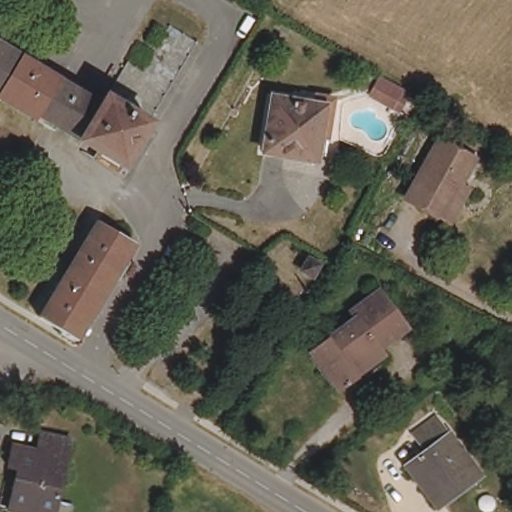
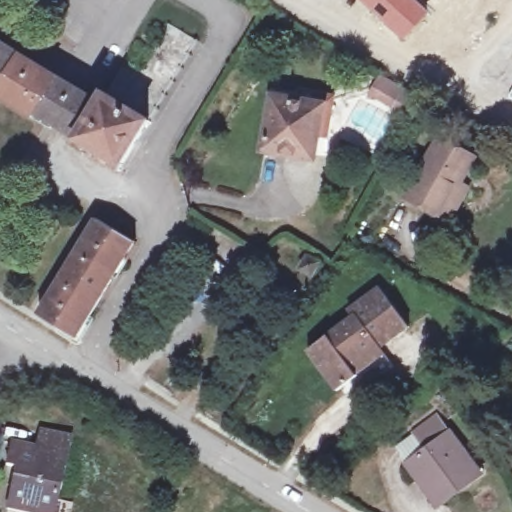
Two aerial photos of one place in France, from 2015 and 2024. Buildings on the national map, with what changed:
new [(430,11),(404,40),(361,0),(418,0),(430,11)]
unchanged [(127,71),(140,77),(170,32),(199,49),(127,174),(37,122),(35,125),(0,105),(0,47),(105,108),(127,71)]
unchanged [(368,96),(377,75),(409,93),(398,113),(368,96)]
unchanged [(303,103),(305,96),(332,101),(330,138),(321,137),(318,158),(267,152),(272,98),(303,103)]
unchanged [(452,224),(444,218),(410,200),(442,142),(475,161),(461,187),(469,192),(452,224)]
unchanged [(97,219),(135,241),(80,339),(60,326),(42,315),(97,219)]
unchanged [(325,274),(318,286),(307,280),(313,267),(325,274)]
unchanged [(360,376),(338,390),(311,350),(352,323),(347,316),(377,293),(404,331),(355,367),(360,376)]
unchanged [(427,482),(434,475),(423,461),(434,451),(420,432),(442,415),(488,475),(455,500),(447,506),(427,482)]
unchanged [(60,512),(10,512),(18,472),(10,469),(16,448),(41,453),(45,437),(77,444),(60,512)]

